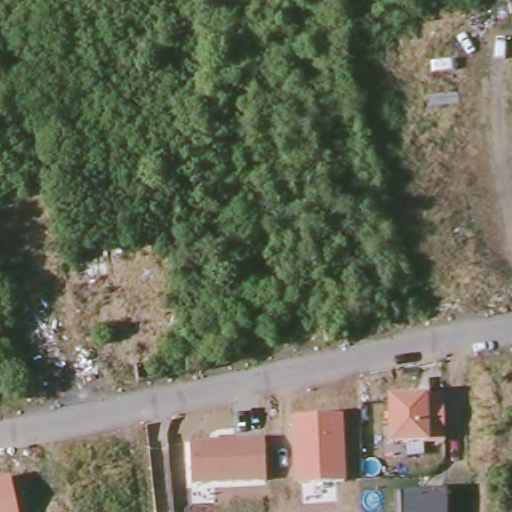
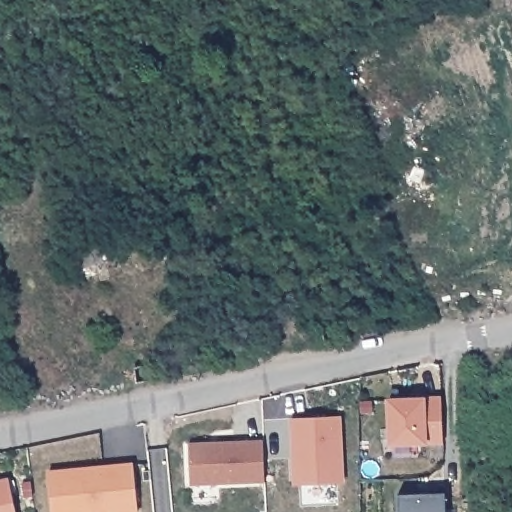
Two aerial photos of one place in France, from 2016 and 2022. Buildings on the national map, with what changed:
unchanged [(112,277),(96,281),(97,295),(85,298),(78,260),(107,254),(112,277)]
unchanged [(443,396),(445,440),(389,443),(387,396),(443,396)]
unchanged [(347,480),(292,483),(290,415),(342,413),(347,480)]
unchanged [(265,481),(192,483),(191,442),(264,439),(265,481)]
new [(138,512),(53,512),(50,470),(133,462),(138,512)]
unchanged [(18,512),(0,512),(0,479),(10,477),(18,512)]
unchanged [(447,493),(447,512),(401,512),(400,494),(447,493)]

